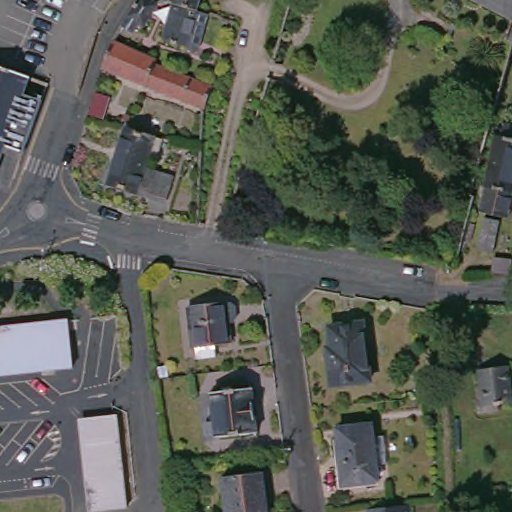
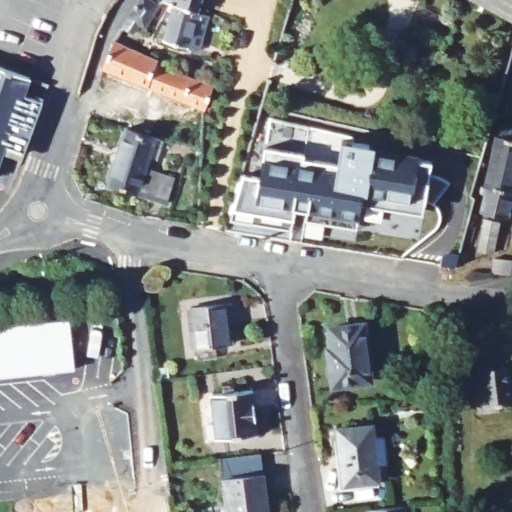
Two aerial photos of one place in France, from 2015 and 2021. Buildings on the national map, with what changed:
unchanged [(144,28),(139,26),(133,34),(123,27),(141,0),(145,0),(157,9),(144,28)]
unchanged [(193,54),(158,42),(169,7),(161,3),(162,0),(198,0),(194,14),(204,17),(193,54)]
unchanged [(512,0),(512,17),(478,0),(512,0)]
unchanged [(104,72),(115,44),(158,63),(157,66),(213,88),(204,112),(104,72)]
unchanged [(35,80),(29,96),(47,102),(26,160),(9,154),(0,178),(0,68),(35,80)]
unchanged [(97,93),(111,98),(103,122),(89,118),(97,93)]
unchanged [(491,180),(488,178),(501,126),(505,127),(508,115),(512,116),(512,210),(487,204),(491,180)]
new [(239,172),(257,177),(271,118),(365,139),(361,153),(377,158),(375,164),(437,182),(425,223),(391,213),(388,224),(361,216),(357,230),(327,221),(324,232),(302,225),(305,214),(295,211),(292,222),(260,213),(257,224),(225,214),(239,172)]
unchanged [(158,161),(150,158),(146,170),(174,180),(165,205),(108,185),(126,130),(165,143),(158,161)]
unchanged [(484,242),(490,211),(506,214),(500,245),(484,242)]
unchanged [(502,251),(512,252),(512,267),(501,266),(502,251)]
unchanged [(194,349),(190,310),(227,305),(231,345),(194,349)]
unchanged [(0,373),(0,326),(67,319),(71,365),(0,373)]
unchanged [(334,388),(329,357),(335,356),(333,329),(365,326),(373,384),(334,388)]
unchanged [(509,377),(512,402),(512,415),(485,418),(480,380),(509,377)]
unchanged [(258,435),(216,440),(216,438),(206,439),(205,424),(215,424),(212,396),(252,392),(258,435)]
unchanged [(116,419),(125,512),(91,512),(82,421),(116,419)]
unchanged [(346,487),(339,430),(373,427),(375,440),(386,439),(388,467),(378,468),(379,484),(346,487)]
unchanged [(268,512),(228,512),(223,476),(263,472),(268,512)]
unchanged [(410,507),(411,512),(372,512),(410,507)]

